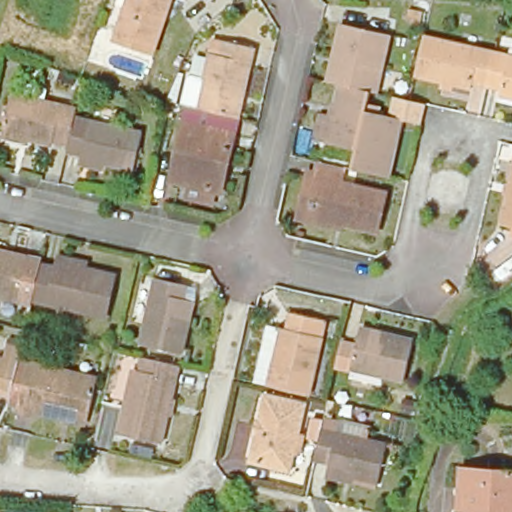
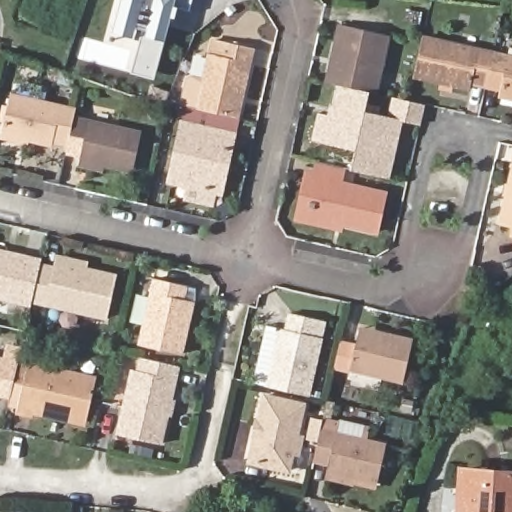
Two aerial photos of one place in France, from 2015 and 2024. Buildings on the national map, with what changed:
unchanged [(116,31),(130,0),(174,0),(154,47),(116,31)]
unchanged [(346,27),(390,37),(378,94),(372,93),(345,87),(332,84),(346,27)]
unchanged [(469,81),(468,88),(413,77),(423,35),(493,50),(484,84),(469,81)]
unchanged [(193,87),(200,88),(207,55),(210,41),(220,43),(250,49),(235,120),(195,110),(187,108),(193,87)]
unchanged [(512,55),(512,97),(501,95),(502,88),(484,84),(493,50),(512,55)]
unchanged [(76,122),(69,153),(2,138),(10,100),(16,102),(19,89),(24,85),(43,89),(45,95),(43,107),(77,115),(76,122)]
unchanged [(334,146),(319,142),(325,115),(338,118),(345,87),(372,93),(368,112),(404,120),(392,178),(353,169),(354,166),(330,160),(334,146)]
unchanged [(185,198),(188,183),(171,179),(185,119),(236,130),(233,147),(227,171),(222,191),(217,190),(214,205),(185,198)]
unchanged [(69,153),(76,122),(89,125),(142,137),(134,175),(80,164),(81,159),(68,156),(69,153)]
unchanged [(343,184),(389,195),(380,233),(316,218),(307,216),(316,177),(320,178),(323,162),(348,168),(343,184)]
unchanged [(512,176),(512,227),(501,224),(512,176)]
unchanged [(3,256),(4,249),(23,253),(39,256),(25,312),(0,307),(0,256),(3,256)]
unchanged [(52,267),(53,261),(112,275),(103,317),(30,301),(39,263),(52,267)]
unchanged [(143,347),(157,281),(189,288),(186,301),(198,303),(195,319),(186,358),(143,347)]
unchanged [(270,324),(286,327),(291,328),(296,308),(330,317),(312,396),(273,387),(257,383),(270,324)]
unchanged [(337,369),(341,354),(343,343),(357,346),(360,332),(361,327),(379,331),(414,340),(405,380),(352,369),(351,372),(337,369)]
unchanged [(160,447),(116,437),(131,373),(135,373),(138,362),(177,371),(160,447)]
unchanged [(1,363),(0,368),(0,363),(1,363)]
unchanged [(82,425),(33,413),(32,419),(15,415),(27,366),(92,382),(82,425)]
unchanged [(292,470),(252,461),(266,395),(308,404),(292,470)]
unchanged [(317,467),(321,448),(312,446),(316,426),(318,416),(328,419),(326,428),(324,438),(390,453),(383,482),(382,487),(316,472),(317,467)]
unchanged [(512,474),(512,512),(480,512),(464,511),(467,471),(512,474)]

